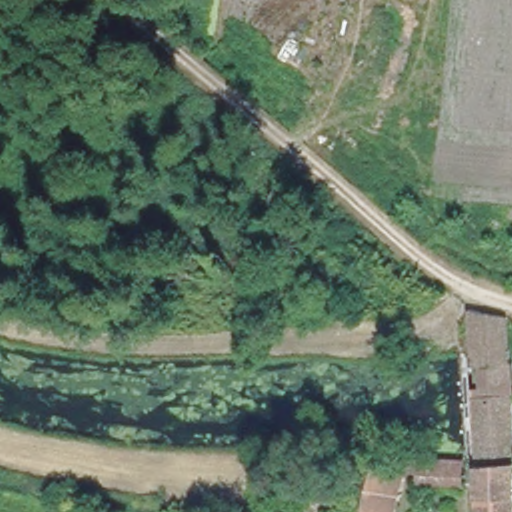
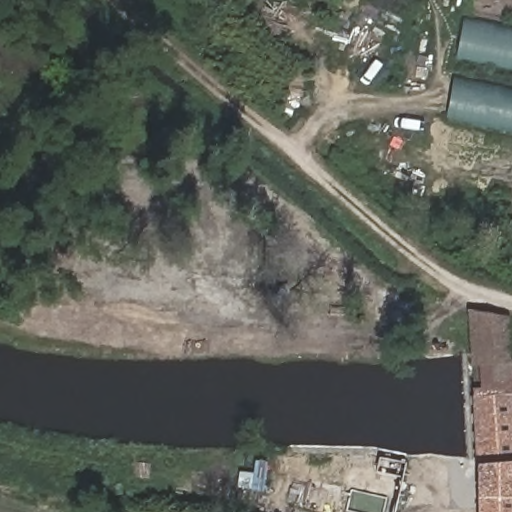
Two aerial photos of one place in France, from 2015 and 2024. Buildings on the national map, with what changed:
new [(512,26),(512,71),(456,59),(466,16),(512,26)]
new [(447,118),(456,76),(512,87),(512,131),(447,118)]
demolished [(311,106),(294,96),(305,77),(322,87),(311,106)]
demolished [(504,210),(512,212),(512,266),(497,265),(504,210)]
unchanged [(512,320),(512,512),(475,512),(472,302),(512,320)]
unchanged [(360,512),(372,460),(408,466),(398,512),(360,512)]
demolished [(464,465),(463,490),(416,489),(418,465),(464,465)]

